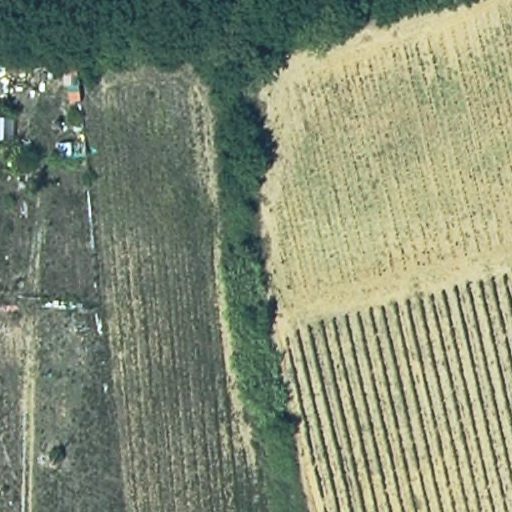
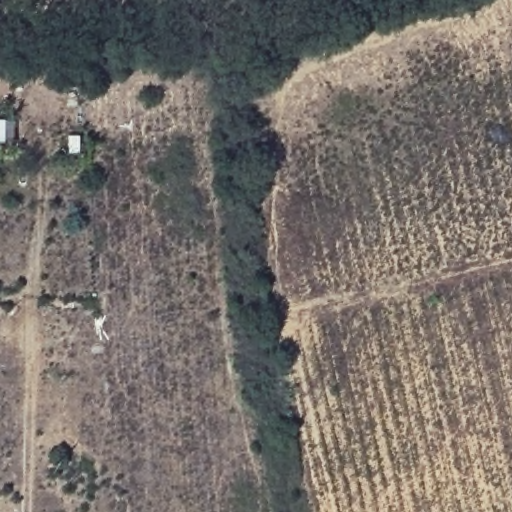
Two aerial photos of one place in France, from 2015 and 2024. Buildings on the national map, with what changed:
unchanged [(3,136),(0,137),(0,116),(2,116),(3,136)]

